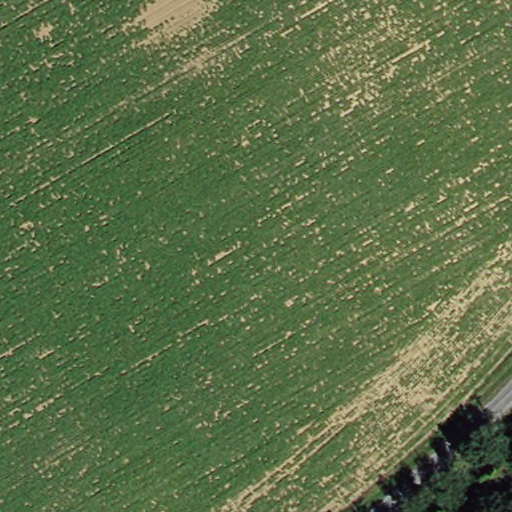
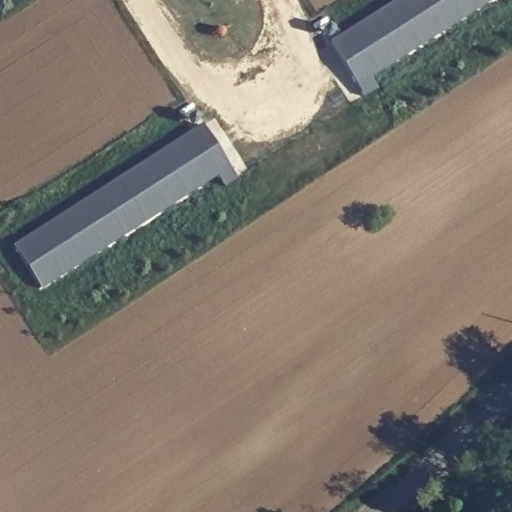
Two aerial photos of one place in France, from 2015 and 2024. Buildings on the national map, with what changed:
new [(492,0),(365,78),(373,90),(360,99),(327,45),(399,0),(492,0)]
new [(200,128),(235,180),(222,189),(213,175),(38,291),(10,249),(200,128)]

